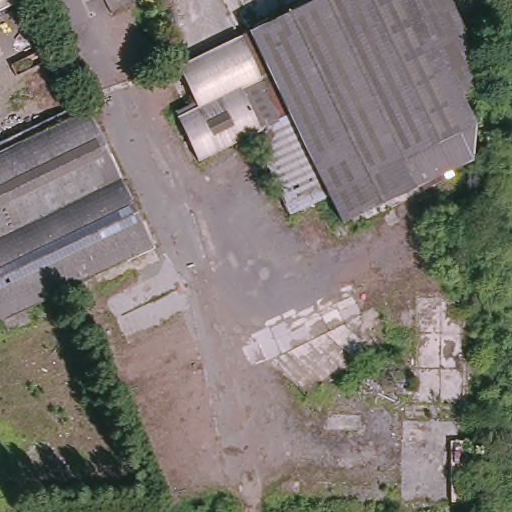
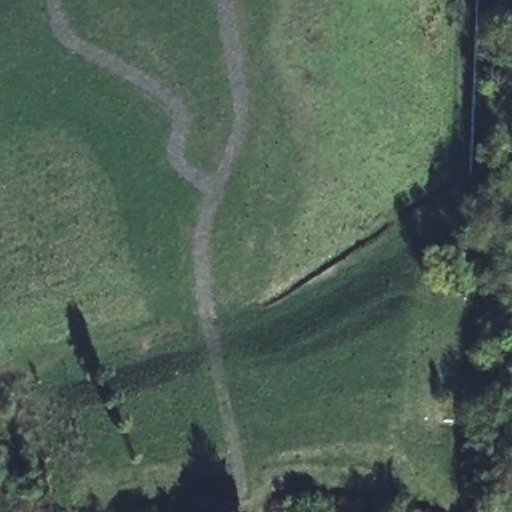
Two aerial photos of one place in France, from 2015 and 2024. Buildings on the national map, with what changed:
demolished [(0,6),(0,0),(14,0),(0,6)]
demolished [(339,217),(287,121),(202,165),(177,115),(197,104),(176,59),(247,26),(303,0),(453,0),(466,27),(465,103),(475,121),(474,157),(425,179),(339,217)]
demolished [(3,322),(0,323),(0,157),(90,113),(91,115),(155,248),(97,275),(96,276),(75,286),(13,316),(17,323),(7,328),(3,322)]
demolished [(105,290),(97,275),(155,248),(163,263),(105,290)]
demolished [(462,295),(461,397),(422,397),(417,397),(415,296),(462,295)]

